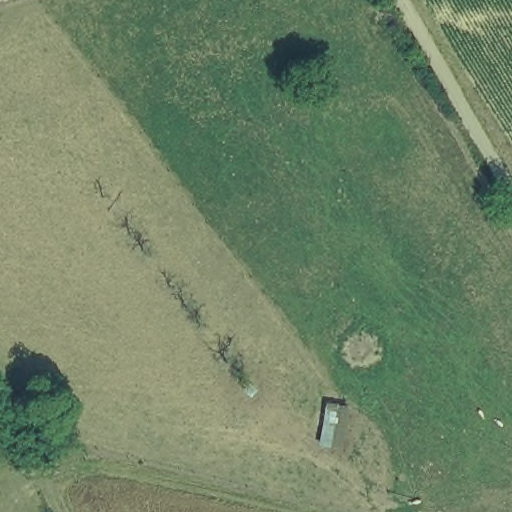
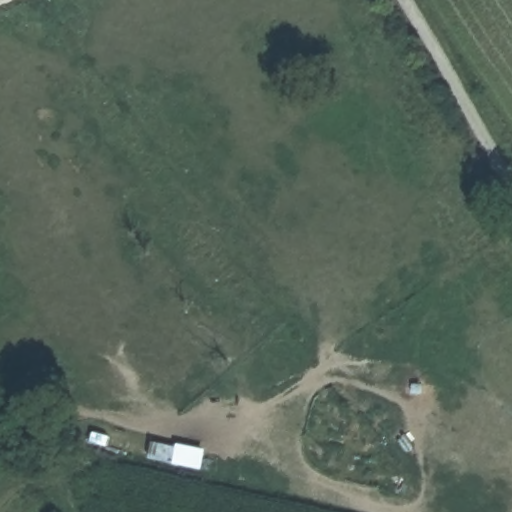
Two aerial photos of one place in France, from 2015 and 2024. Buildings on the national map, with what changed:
unchanged [(347,451),(318,449),(322,403),(353,405),(347,451)]

